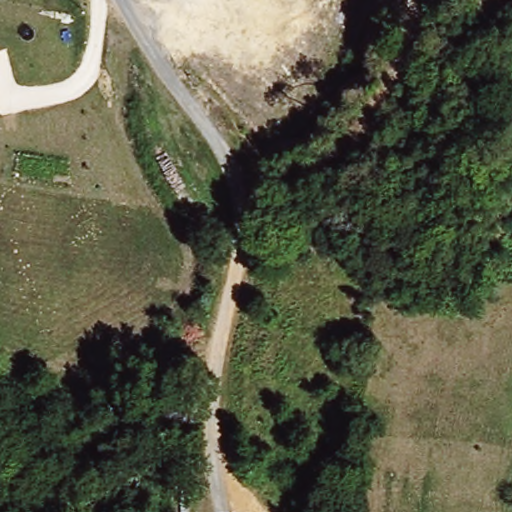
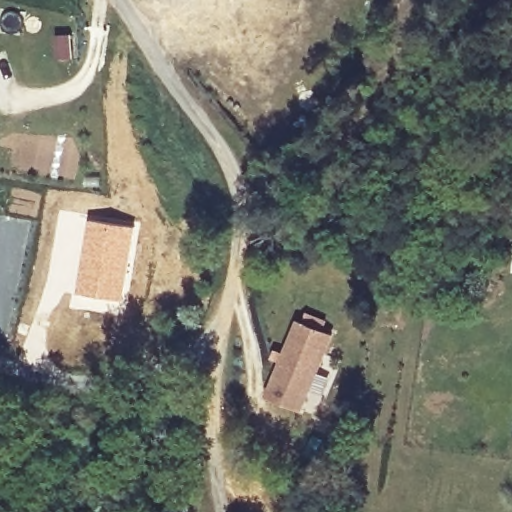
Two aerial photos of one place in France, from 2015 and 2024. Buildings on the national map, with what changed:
new [(88,220),(134,226),(122,302),(76,293),(88,220)]
new [(335,335),(302,412),(265,397),(297,320),(335,335)]

